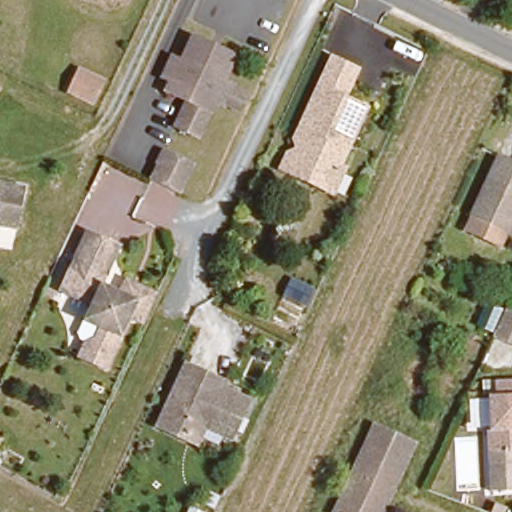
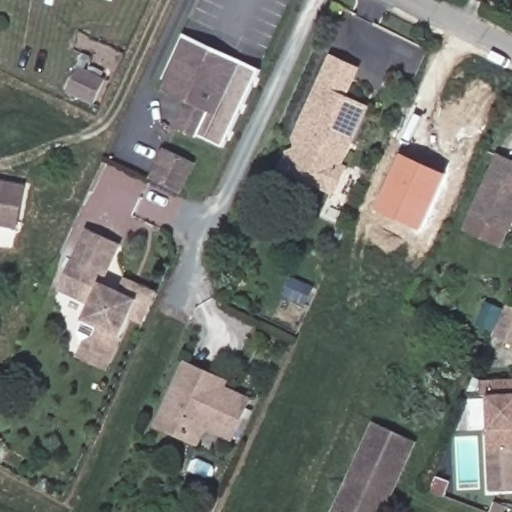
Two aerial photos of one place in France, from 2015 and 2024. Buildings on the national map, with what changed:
unchanged [(239,113),(214,101),(197,135),(176,125),(190,94),(170,85),(176,72),(165,68),(175,50),(187,54),(197,34),(230,49),(221,69),(234,75),(231,81),(250,91),(239,113)]
unchanged [(343,194),(327,186),(290,170),(280,165),(300,121),(328,56),(346,64),(348,61),(365,71),(354,96),(373,105),(345,171),(352,175),(343,194)]
unchanged [(89,102),(61,87),(76,60),(102,73),(89,102)]
unchanged [(162,149),(188,161),(176,188),(150,176),(162,149)]
new [(450,175),(423,231),(377,210),(402,154),(450,175)]
unchanged [(512,226),(507,236),(470,217),(498,161),(512,168),(512,226)]
unchanged [(14,228),(0,224),(0,181),(23,188),(14,228)]
unchanged [(120,243),(102,279),(119,286),(125,276),(144,285),(105,366),(91,360),(99,346),(92,343),(101,324),(92,297),(61,281),(87,228),(120,243)]
new [(291,278),(286,276),(291,265),(320,278),(306,307),(283,296),(291,278)]
unchanged [(512,303),(512,342),(492,333),(506,301),(512,303)]
unchanged [(225,382),(222,390),(251,403),(234,439),(205,426),(201,432),(185,425),(176,440),(150,428),(182,362),(225,382)]
unchanged [(481,425),(487,425),(486,392),(494,392),(493,376),(512,375),(512,484),(483,485),(481,425)]
unchanged [(410,449),(380,512),(336,512),(373,431),(410,449)]
unchanged [(11,453),(0,473),(0,472),(0,448),(11,453)]

